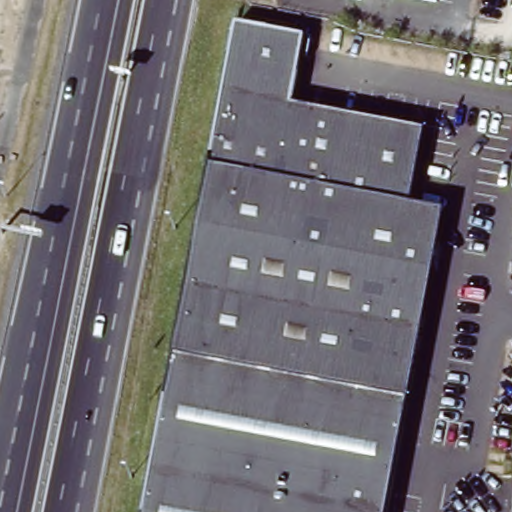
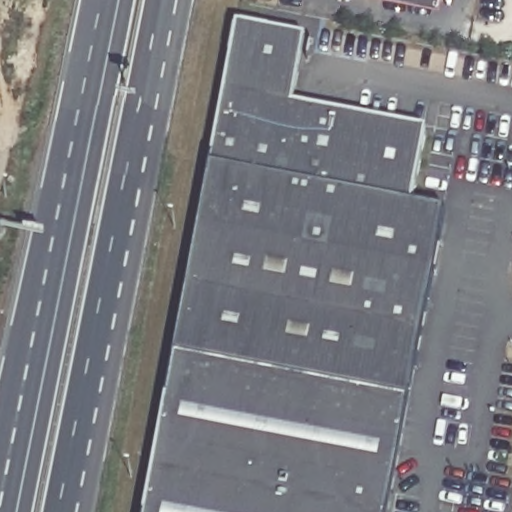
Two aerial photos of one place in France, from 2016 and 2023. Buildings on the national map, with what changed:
unchanged [(437,0),(436,5),(410,0),(437,0)]
unchanged [(294,108),(427,139),(412,209),(444,216),(407,407),(170,360),(237,26),(307,42),(294,108)]
unchanged [(150,462),(152,449),(170,360),(407,407),(387,512),(141,512),(150,462)]

